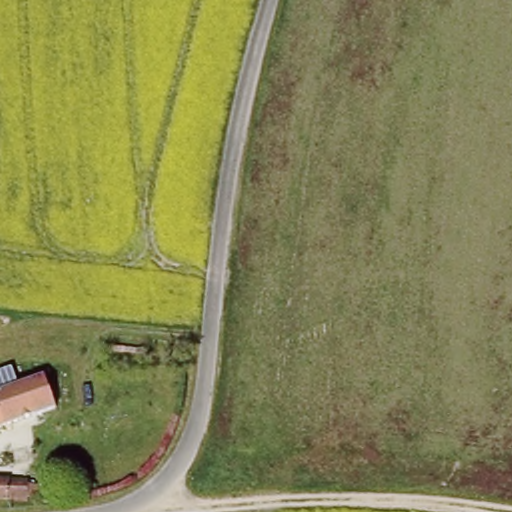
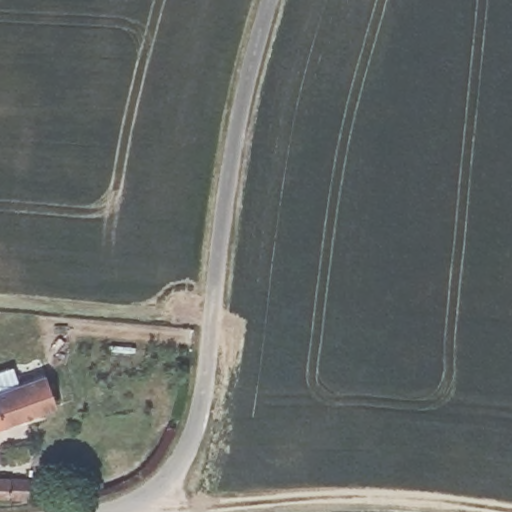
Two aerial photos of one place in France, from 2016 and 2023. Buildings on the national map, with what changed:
unchanged [(45,372),(58,407),(0,428),(0,387),(45,372)]
unchanged [(40,485),(52,486),(50,496),(36,496),(36,499),(26,498),(0,496),(0,477),(27,480),(40,480),(40,485)]

